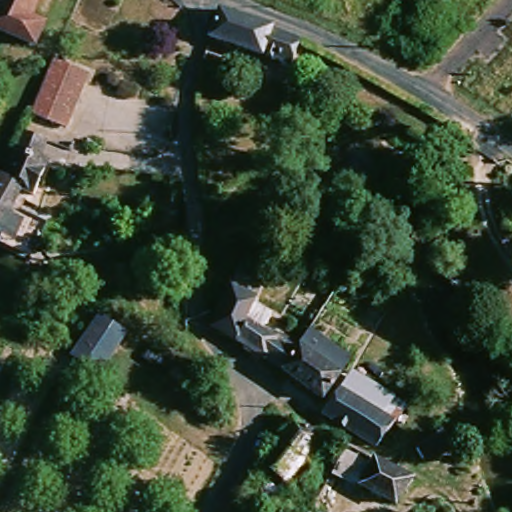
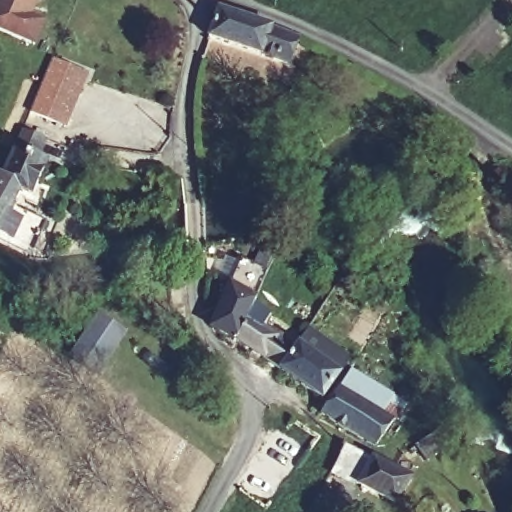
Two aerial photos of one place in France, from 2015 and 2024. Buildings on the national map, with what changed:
unchanged [(0,32),(0,1),(1,0),(41,0),(33,17),(43,22),(33,47),(0,32)]
unchanged [(216,41),(226,13),(303,42),(294,68),(216,41)]
unchanged [(58,59),(92,73),(87,83),(68,130),(33,116),(55,69),(58,59)]
unchanged [(3,180),(17,150),(26,131),(51,141),(42,164),(48,167),(33,201),(21,197),(16,207),(51,225),(38,252),(0,234),(0,179),(3,180)]
unchanged [(279,365),(234,336),(211,323),(227,281),(251,290),(249,297),(265,305),(259,321),(293,343),(279,365)]
unchanged [(105,319),(138,334),(115,382),(84,367),(105,319)]
unchanged [(338,367),(325,388),(290,362),(303,342),(338,367)]
unchanged [(382,403),(397,410),(386,434),(369,427),(335,402),(353,375),(382,403)]
unchanged [(254,478),(302,411),(330,432),(268,510),(263,506),(259,512),(243,512),(235,506),(247,476),(254,478)]
unchanged [(341,475),(355,447),(378,459),(413,477),(399,505),(361,485),(341,475)]

